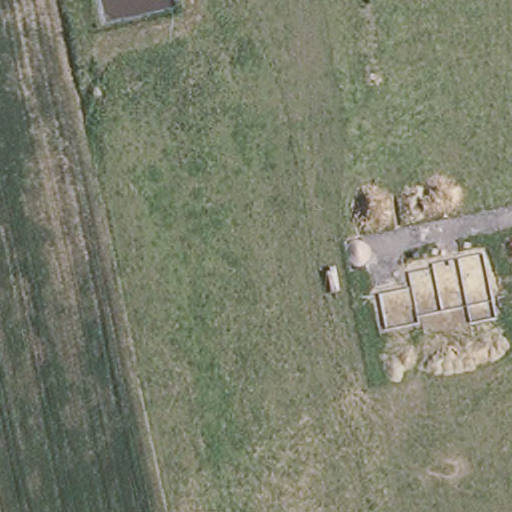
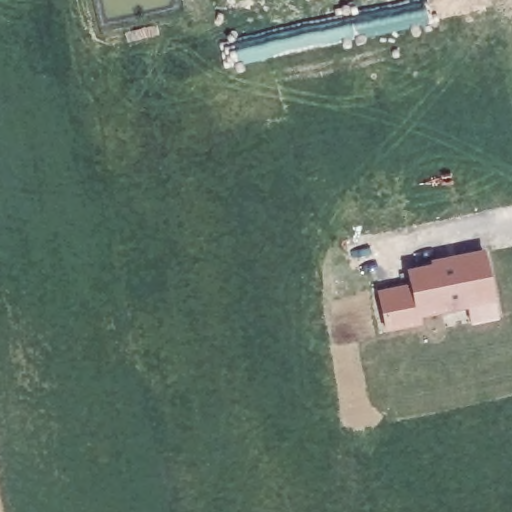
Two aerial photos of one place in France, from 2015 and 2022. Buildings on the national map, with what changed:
new [(377,294),(409,287),(406,273),(430,268),(430,264),(482,253),(492,302),(417,317),(418,324),(384,331),(377,294)]

